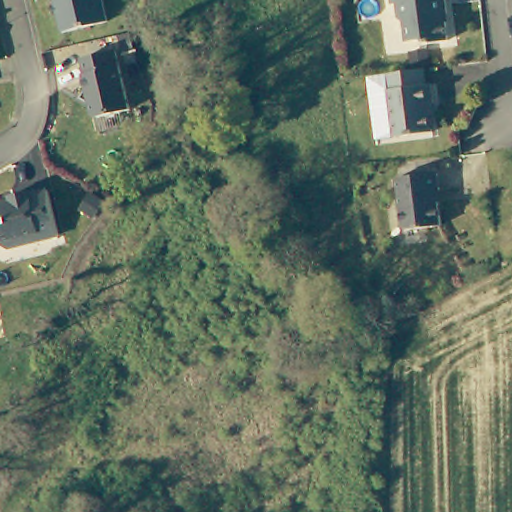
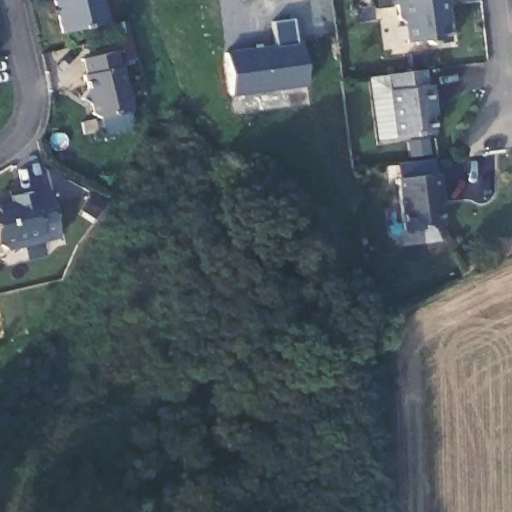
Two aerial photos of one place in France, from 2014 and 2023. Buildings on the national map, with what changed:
unchanged [(55,0),(102,0),(108,22),(63,33),(55,0)]
unchanged [(450,12),(447,14),(450,39),(426,42),(425,36),(409,38),(409,29),(400,27),(397,4),(393,4),(392,0),(448,0),(450,12)]
new [(276,44),(272,20),(294,17),(298,42),(303,42),(309,87),(232,97),(226,50),(276,44)]
unchanged [(130,110),(99,117),(93,114),(91,104),(81,98),(87,90),(84,75),(86,75),(83,59),(116,51),(130,110)]
unchanged [(424,66),(426,89),(432,89),(435,105),(430,106),(433,130),(396,135),(385,72),(424,66)]
unchanged [(439,184),(436,186),(440,223),(403,225),(397,173),(437,169),(439,184)]
unchanged [(0,205),(11,202),(10,196),(29,191),(30,195),(49,190),(60,236),(7,249),(0,245),(0,205)]

